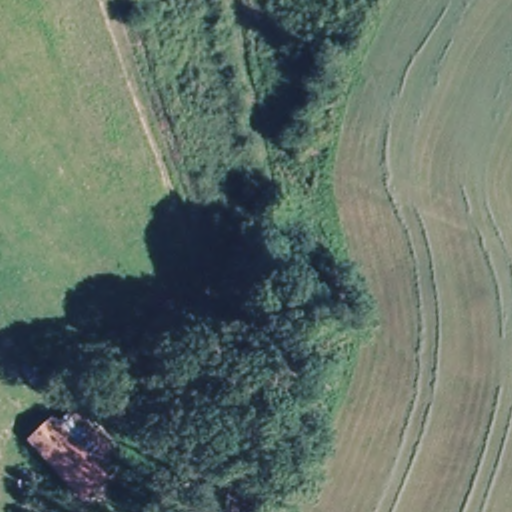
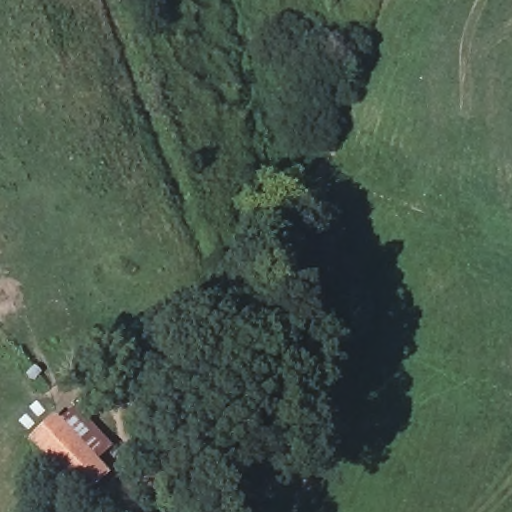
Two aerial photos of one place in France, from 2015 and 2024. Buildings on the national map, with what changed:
unchanged [(25,443),(52,414),(57,421),(72,409),(107,450),(97,464),(104,476),(80,501),(25,443)]

